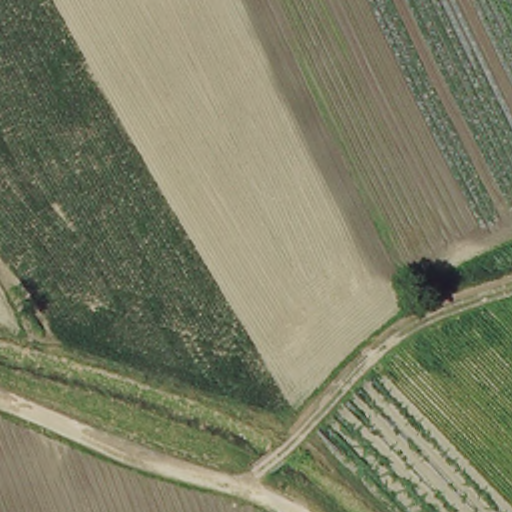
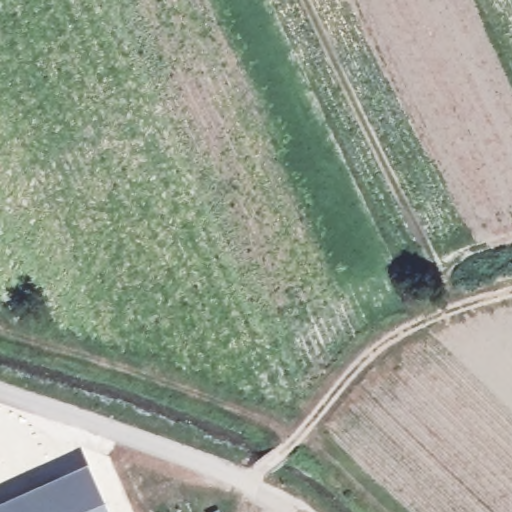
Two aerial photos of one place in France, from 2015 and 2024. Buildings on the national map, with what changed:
new [(88,465),(109,512),(0,512),(0,504),(88,465)]

